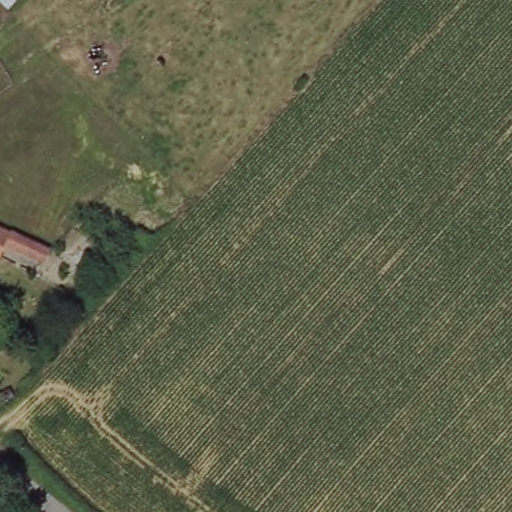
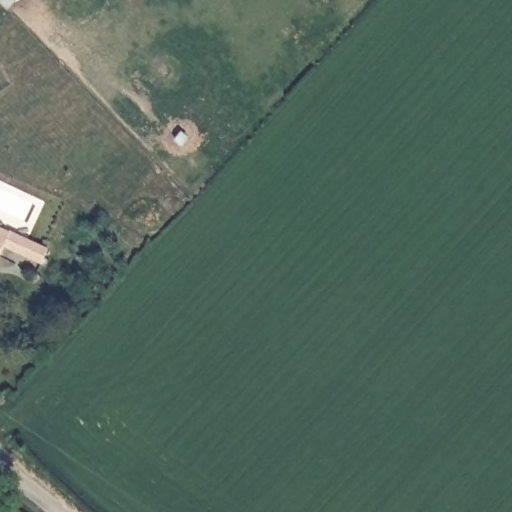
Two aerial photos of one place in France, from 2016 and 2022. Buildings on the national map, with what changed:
unchanged [(51,256),(46,265),(12,247),(1,267),(0,266),(0,229),(40,250),(51,256)]
unchanged [(0,368),(1,368),(18,397),(2,414),(0,410),(0,368)]

